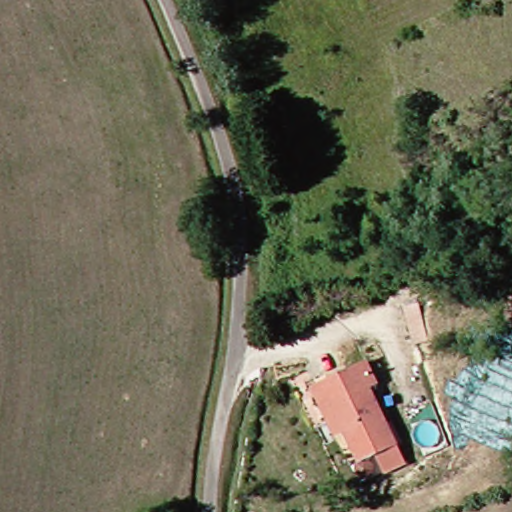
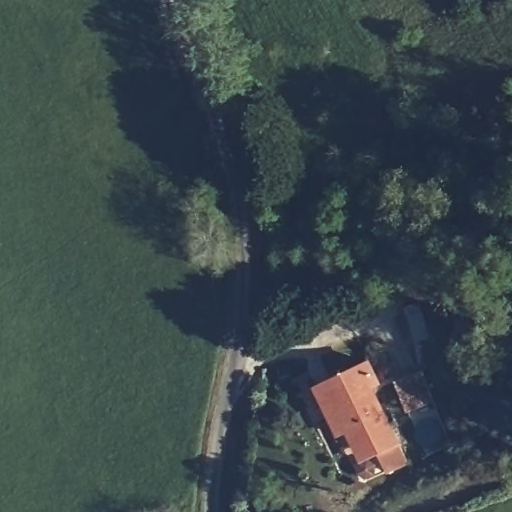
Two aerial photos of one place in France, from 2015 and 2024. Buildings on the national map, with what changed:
unchanged [(344,452),(339,435),(329,437),(322,413),(313,385),(367,369),(374,389),(367,390),(387,454),(366,460),(348,467),(344,452)]

